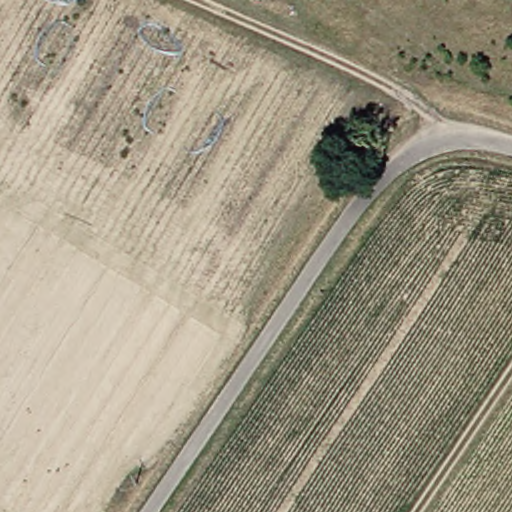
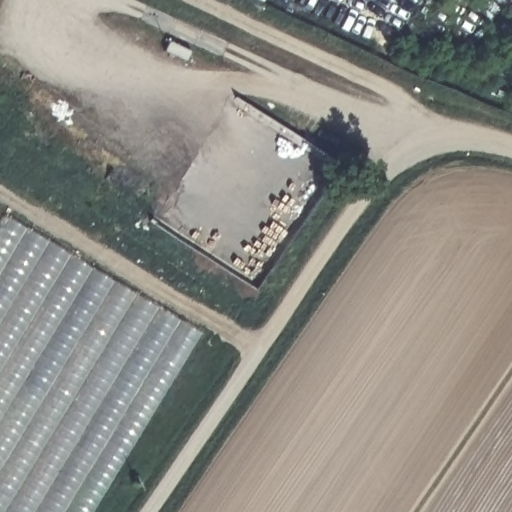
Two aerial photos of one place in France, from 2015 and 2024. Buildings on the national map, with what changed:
unchanged [(262,4),(252,0),(265,0),(262,4)]
new [(0,512),(0,228),(7,217),(202,334),(94,512),(0,512)]

